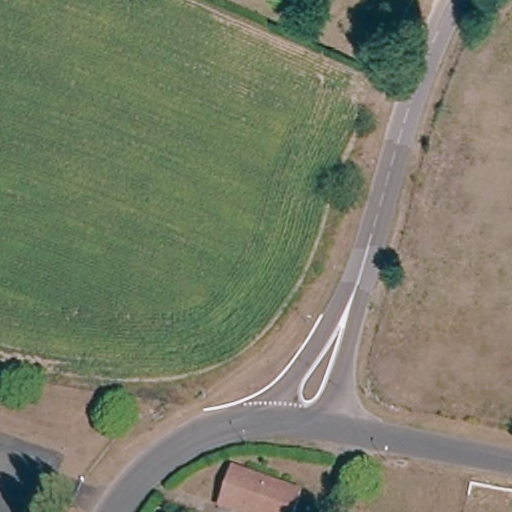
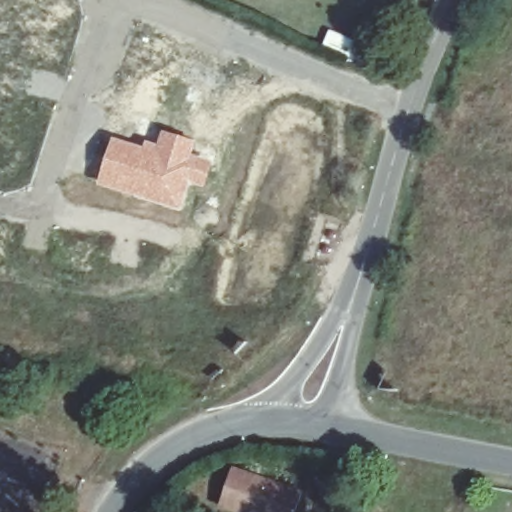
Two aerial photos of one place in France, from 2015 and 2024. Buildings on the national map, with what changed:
new [(111,137),(142,146),(145,140),(156,144),(161,130),(195,141),(191,155),(212,162),(204,189),(190,185),(181,213),(95,186),(111,137)]
unchanged [(302,494),(295,512),(240,512),(219,505),(232,469),(302,494)]

